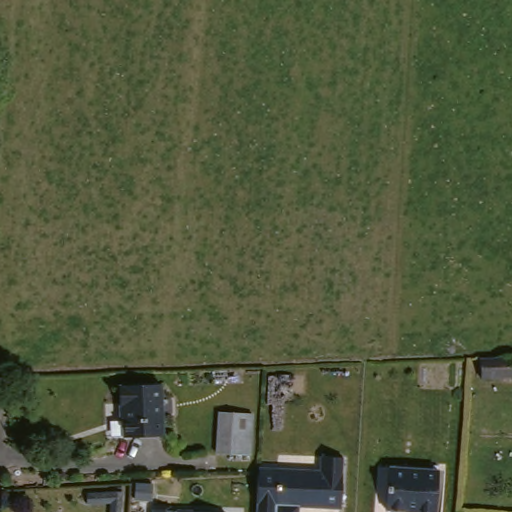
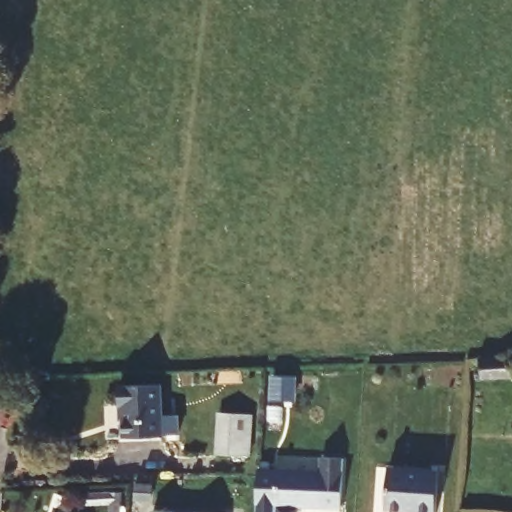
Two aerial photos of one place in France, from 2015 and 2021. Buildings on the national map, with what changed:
unchanged [(512,359),(512,375),(481,377),(481,361),(512,359)]
unchanged [(118,439),(116,408),(112,408),(112,393),(153,391),(155,438),(118,439)]
unchanged [(241,458),(206,455),(207,433),(209,416),(222,416),(244,417),(241,458)]
unchanged [(250,476),(250,470),(270,472),(313,475),(314,459),(335,461),(332,511),(268,507),(268,512),(248,512),(250,476)]
unchanged [(426,512),(378,512),(380,471),(428,475),(426,512)]

